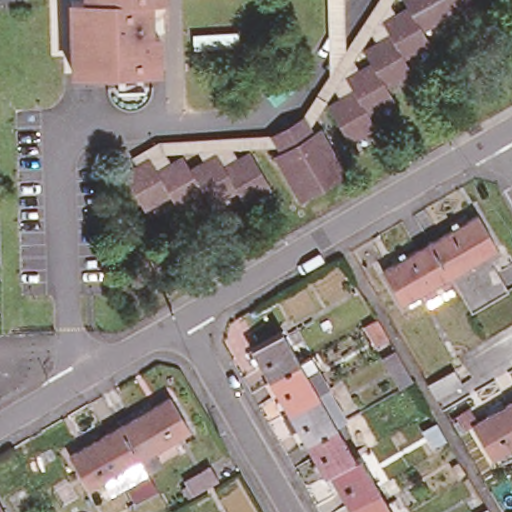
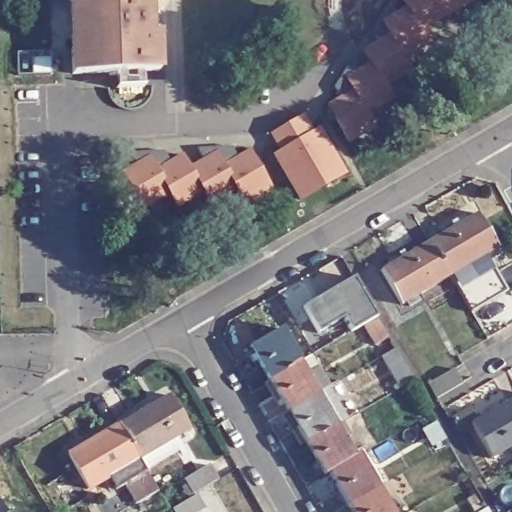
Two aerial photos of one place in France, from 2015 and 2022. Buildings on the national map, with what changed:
unchanged [(70,0),(82,0),(96,0),(98,73),(72,74),(70,0)]
unchanged [(98,73),(96,0),(147,0),(148,34),(156,34),(157,71),(142,71),(142,89),(116,88),(115,73),(98,73)]
unchanged [(273,127),(296,112),(371,0),(400,0),(407,11),(382,25),(390,38),(364,54),(371,67),(347,81),(356,95),(330,111),(325,103),(315,126),(319,131),(277,157),(271,146),(247,147),(250,154),(227,169),(219,155),(193,172),(185,159),(160,175),(151,161),(140,169),(129,151),(155,134),(273,127)]
unchanged [(429,43),(404,58),(412,71),(386,86),(394,100),(370,115),(379,129),(351,145),(330,111),(356,95),(347,81),(371,67),(364,54),(390,38),(382,25),(407,11),(400,0),(472,0),(421,30),(429,43)]
unchanged [(345,174),(302,200),(277,157),(319,131),(345,174)]
unchanged [(177,209),(169,195),(144,211),(124,179),(140,169),(151,161),(160,175),(185,159),(193,172),(219,155),(227,169),(250,154),(271,188),(244,204),(236,191),(212,206),(203,193),(177,209)]
unchanged [(472,213),(492,245),(496,253),(486,259),(482,252),(445,273),(397,302),(377,268),(426,240),(472,213)]
new [(376,347),(365,328),(363,323),(350,331),(342,319),(317,334),(302,308),(353,279),(375,315),(377,321),(388,340),(376,347)]
demolished [(388,340),(376,347),(365,328),(377,321),(388,340)]
unchanged [(300,440),(282,408),(264,377),(245,344),(274,328),(292,360),(305,353),(322,384),(321,386),(340,418),(330,423),(349,456),(325,469),(319,473),(300,440)]
unchanged [(395,352),(413,383),(402,389),(383,359),(395,352)]
unchanged [(437,401),(429,386),(457,369),(467,385),(437,401)]
unchanged [(170,391),(190,426),(139,456),(119,422),(170,391)]
unchanged [(512,397),(512,441),(497,450),(477,417),(512,397)]
unchanged [(88,484),(69,451),(119,422),(139,456),(88,484)]
unchanged [(325,469),(349,456),(354,453),(372,485),(344,502),(325,469)]
unchanged [(186,478),(210,464),(218,482),(194,494),(186,478)]
unchanged [(372,485),(388,512),(349,512),(344,502),(372,485)]
unchanged [(0,501),(7,512),(0,512),(0,501)]

